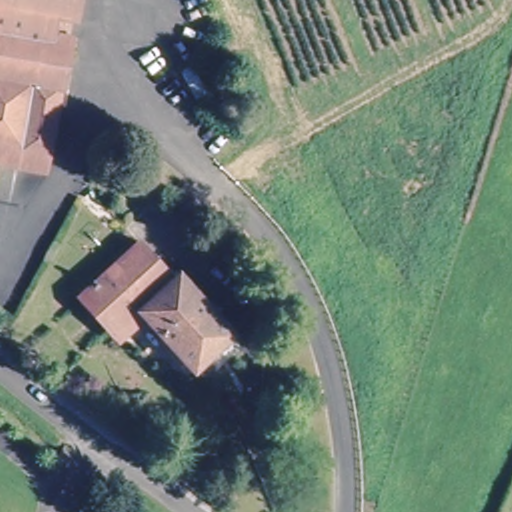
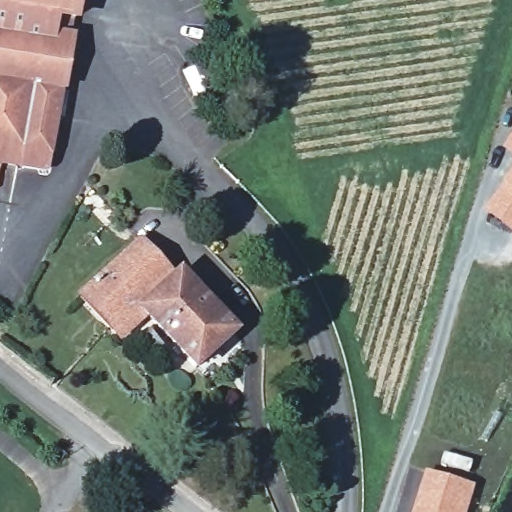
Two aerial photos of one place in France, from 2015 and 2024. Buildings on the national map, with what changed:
unchanged [(74,26),(48,23),(44,40),(69,44),(47,175),(0,165),(0,0),(78,0),(74,26)]
new [(511,138),(512,137),(512,149),(506,145),(511,138)]
new [(512,175),(512,226),(487,207),(512,175)]
unchanged [(171,284),(179,281),(227,338),(189,375),(119,300),(98,317),(79,296),(138,247),(171,284)]
new [(468,486),(460,512),(412,512),(424,473),(468,486)]

